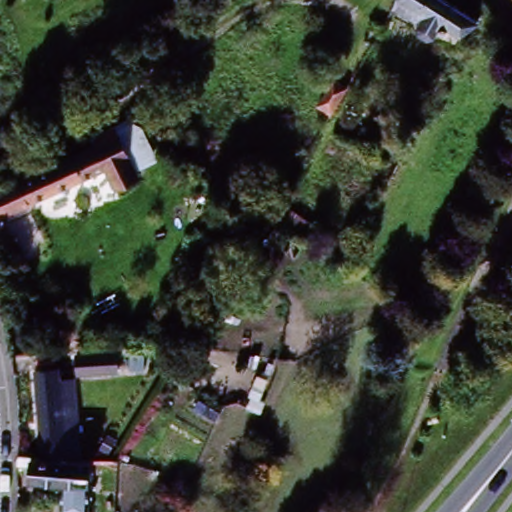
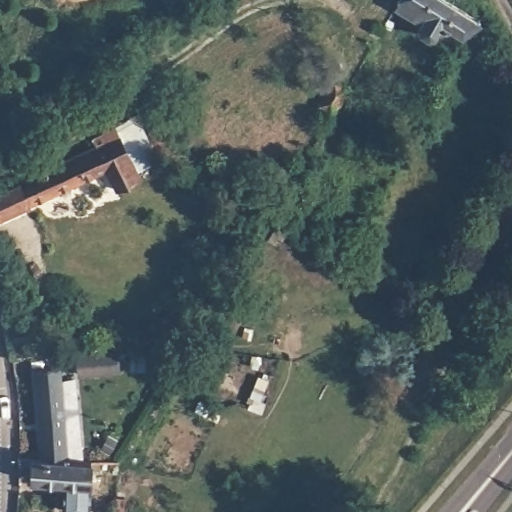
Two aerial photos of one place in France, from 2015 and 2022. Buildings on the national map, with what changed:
unchanged [(406,0),(451,0),(481,16),(467,26),(465,31),(444,20),(437,32),(429,37),(424,34),(422,26),(429,12),(406,0)]
unchanged [(320,106),(336,79),(347,86),(332,113),(320,106)]
unchanged [(92,138),(115,126),(130,156),(140,177),(114,189),(105,168),(0,219),(0,193),(95,146),(92,138)]
unchanged [(272,217),(272,216),(280,200),(316,224),(305,240),(272,217)]
unchanged [(97,355),(99,372),(74,374),(72,359),(97,355)]
unchanged [(37,372),(62,370),(63,383),(75,382),(81,455),(45,454),(37,372)]
unchanged [(94,460),(91,510),(63,509),(64,483),(35,481),(35,466),(19,466),(19,457),(94,460)]

